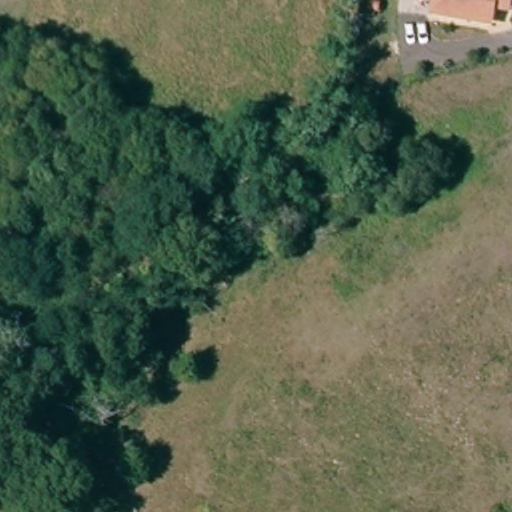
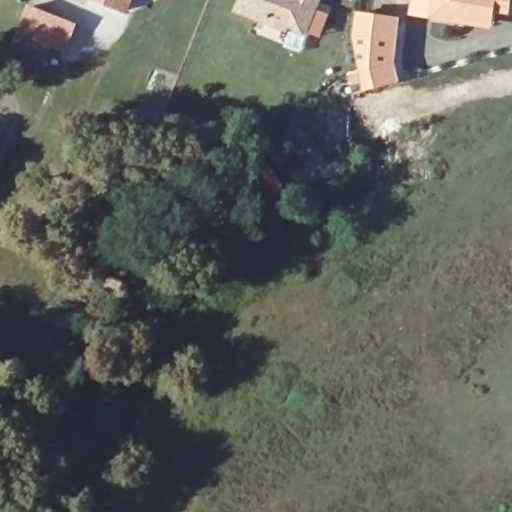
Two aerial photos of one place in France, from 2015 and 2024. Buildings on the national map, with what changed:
new [(103,0),(130,0),(126,9),(103,0)]
new [(288,27),(286,31),(238,12),(243,0),(321,0),(307,35),(288,27)]
unchanged [(433,14),(435,0),(510,0),(509,10),(494,7),(492,21),(491,24),(468,20),(433,14)]
new [(23,29),(33,4),(78,22),(68,47),(23,29)]
new [(402,16),(397,63),(402,81),(365,91),(354,37),(357,11),(402,16)]

